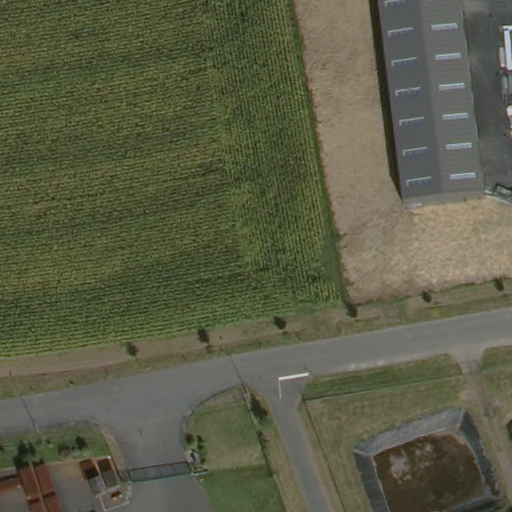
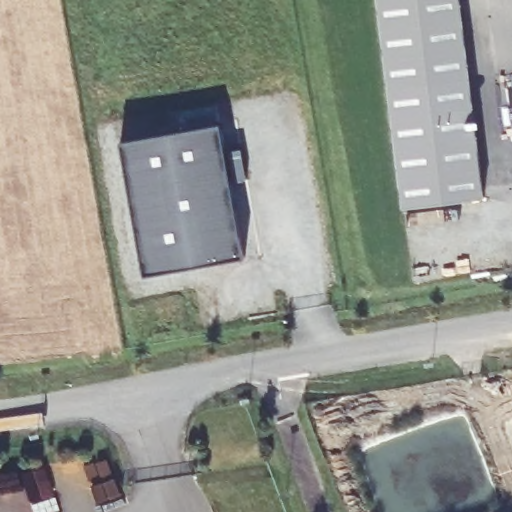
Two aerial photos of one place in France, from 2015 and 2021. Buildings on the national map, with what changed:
unchanged [(378,0),(462,0),(485,197),(402,206),(378,0)]
new [(225,124),(250,258),(149,276),(125,141),(225,124)]

